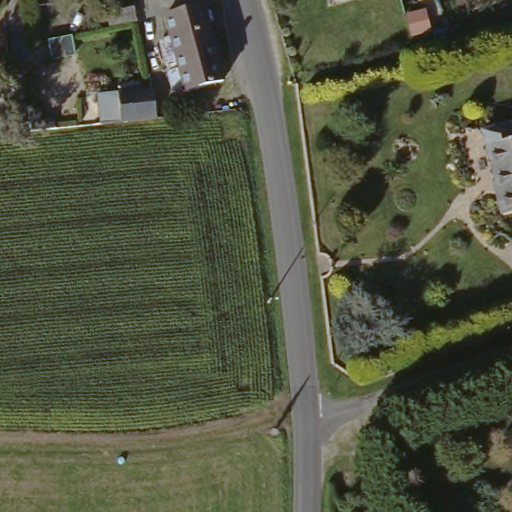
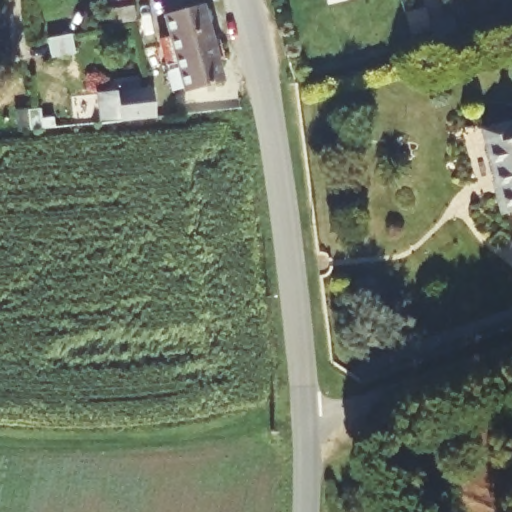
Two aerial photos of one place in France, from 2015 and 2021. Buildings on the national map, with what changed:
unchanged [(112,21),(109,5),(134,0),(137,16),(112,21)]
unchanged [(204,12),(210,11),(213,23),(207,25),(219,82),(182,90),(181,85),(173,86),(164,40),(170,39),(167,14),(203,6),(204,12)]
unchanged [(94,73),(120,70),(120,74),(122,91),(170,86),(172,116),(125,121),(116,121),(100,124),(94,73)]
unchanged [(17,135),(16,110),(29,109),(32,133),(17,135)]
unchanged [(495,214),(488,185),(493,183),(480,126),(502,119),(507,135),(512,133),(512,210),(495,214)]

